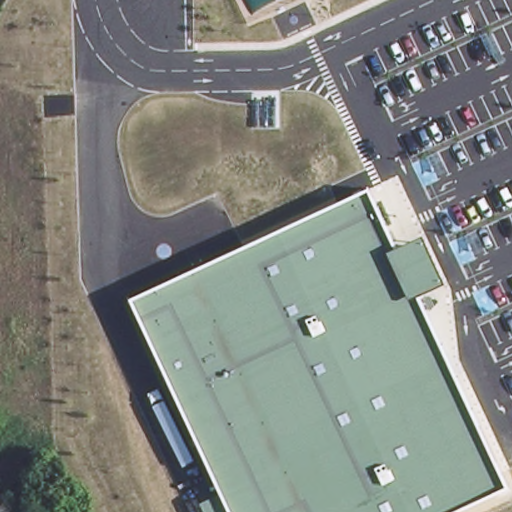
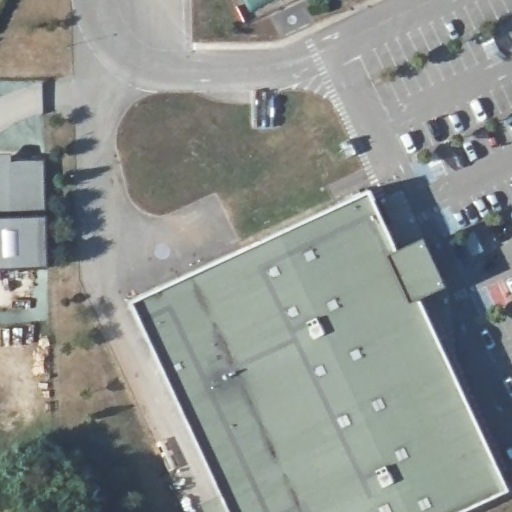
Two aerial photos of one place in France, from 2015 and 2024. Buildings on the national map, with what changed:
new [(43,159),(41,268),(0,267),(0,158),(43,159)]
unchanged [(423,237),(444,284),(418,298),(507,487),(453,512),(204,512),(201,505),(220,495),(130,301),(368,190),(396,249),(423,237)]

